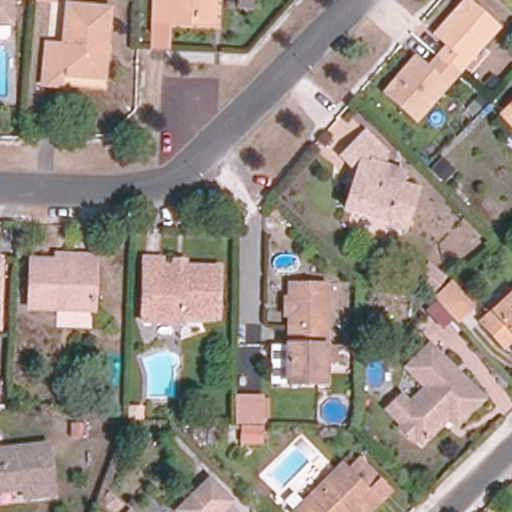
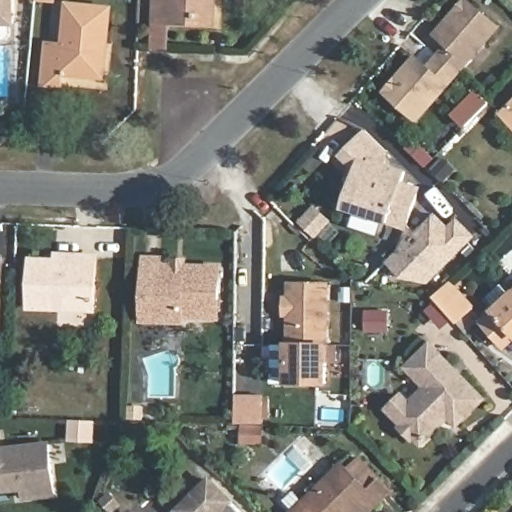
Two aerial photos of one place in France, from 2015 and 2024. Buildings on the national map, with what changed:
unchanged [(12,0),(12,23),(0,23),(0,0),(12,0)]
unchanged [(156,0),(212,0),(211,16),(172,14),(172,20),(155,20),(156,0)]
unchanged [(448,45),(436,35),(456,12),(460,15),(471,3),(498,27),(458,73),(438,56),(448,45)]
unchanged [(39,84),(43,44),(59,45),(64,4),(106,9),(103,43),(99,43),(95,77),(58,73),(57,86),(39,84)]
unchanged [(428,68),(438,56),(458,73),(417,120),(390,96),(400,84),(396,80),(416,57),(428,68)]
new [(475,92),(488,103),(465,127),(452,114),(475,92)]
unchanged [(512,124),(502,113),(512,105),(512,124)]
unchanged [(345,203),(353,178),(357,166),(352,161),(341,150),(366,125),(388,147),(386,159),(406,166),(403,177),(420,183),(407,223),(345,203)]
new [(429,282),(403,277),(388,262),(435,211),(450,225),(458,216),(476,234),(429,282)]
unchanged [(80,261),(81,255),(97,255),(95,310),(30,307),(32,259),(57,260),(80,261)]
unchanged [(2,257),(0,314),(0,257),(2,257)]
unchanged [(164,258),(164,265),(174,265),(186,266),(221,267),(220,318),(184,316),(184,321),(142,320),(145,258),(164,258)]
unchanged [(295,328),(290,328),(290,283),(327,283),(327,344),(295,344),(295,328)]
unchanged [(434,297),(448,283),(468,305),(453,319),(434,297)]
unchanged [(512,290),(512,335),(508,332),(497,343),(477,321),(512,290)]
unchanged [(288,344),(295,344),(327,344),(326,383),(288,383),(288,344)]
unchanged [(423,443),(415,436),(411,436),(403,428),(403,424),(396,417),(410,403),(427,387),(407,367),(430,344),(484,398),(457,425),(450,417),(423,443)]
unchanged [(236,396),(264,397),(264,425),(240,424),(236,424),(236,396)]
unchanged [(137,398),(150,398),(150,408),(137,408),(137,398)]
unchanged [(49,444),(55,494),(32,497),(30,487),(25,488),(0,491),(0,450),(49,444)]
unchanged [(358,457),(390,490),(379,501),(368,512),(365,512),(361,508),(358,512),(295,512),(296,510),(286,499),(295,490),(306,501),(342,465),(346,469),(358,457)]
unchanged [(179,510),(210,479),(242,512),(180,512),(179,510)]

